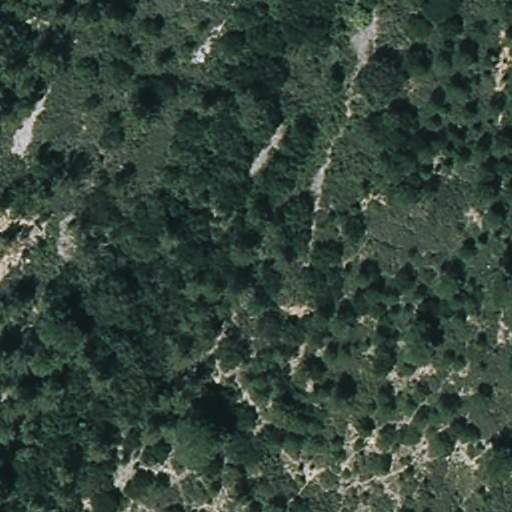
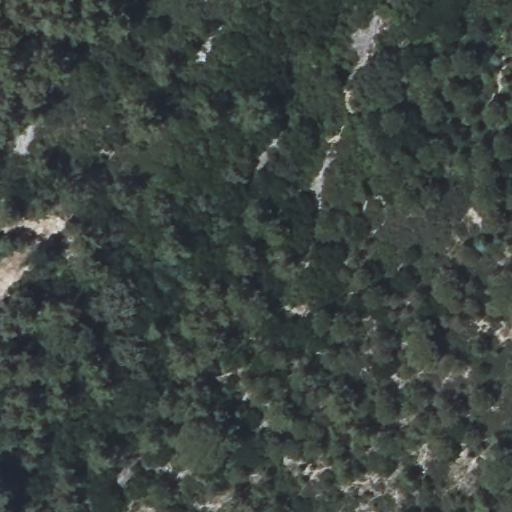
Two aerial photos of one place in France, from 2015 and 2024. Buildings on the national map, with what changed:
[]

